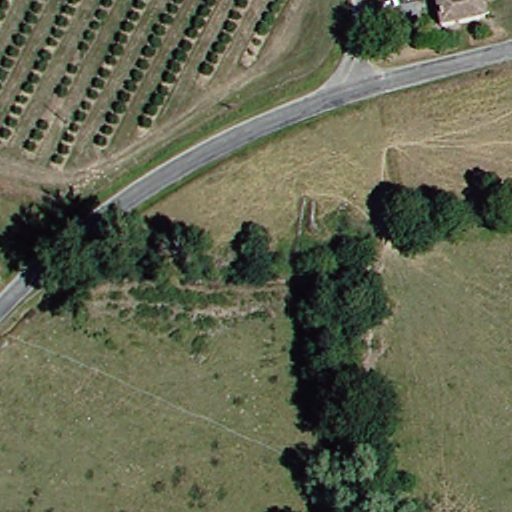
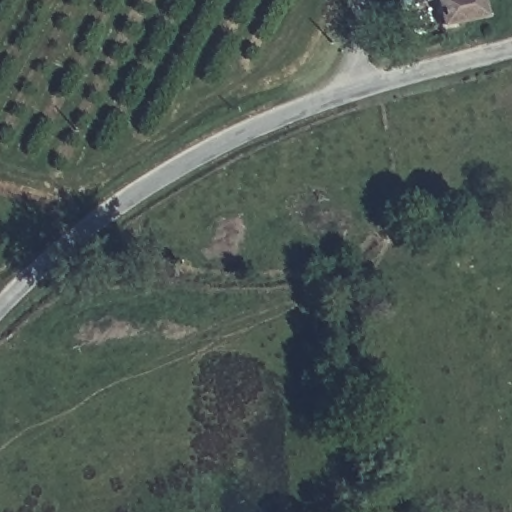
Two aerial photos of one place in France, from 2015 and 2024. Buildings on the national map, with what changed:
unchanged [(422,0),(470,0),(474,19),(426,27),(422,0)]

